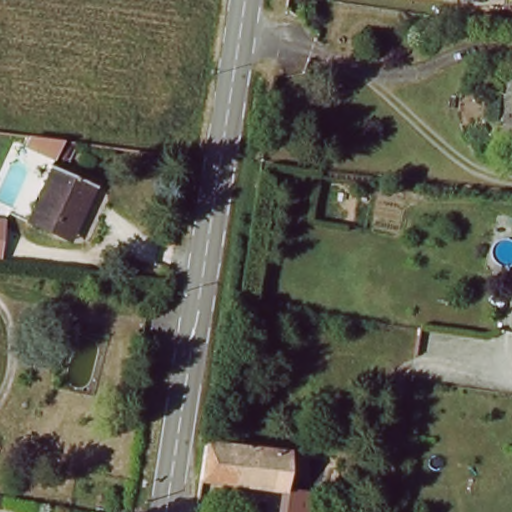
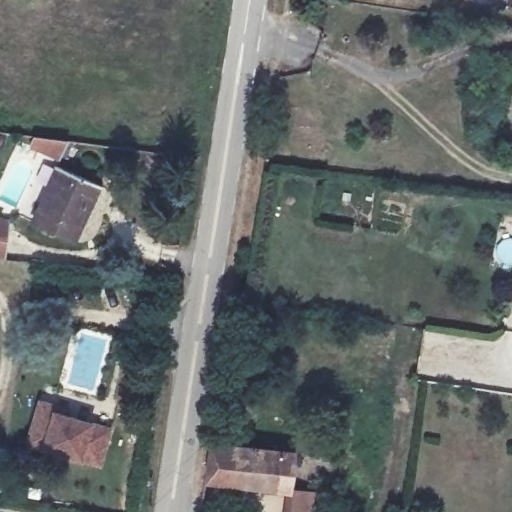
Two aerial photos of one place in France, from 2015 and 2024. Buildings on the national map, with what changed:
unchanged [(59,234),(30,220),(55,168),(101,189),(81,229),(75,242),(59,234)]
unchanged [(5,259),(0,258),(0,217),(10,219),(5,259)]
new [(81,460),(39,448),(25,444),(37,400),(73,409),(71,417),(93,423),(111,429),(100,467),(81,460)]
unchanged [(209,481),(214,451),(215,445),(293,455),(288,490),(209,481)]
unchanged [(316,493),(314,512),(284,512),(288,490),(316,493)]

